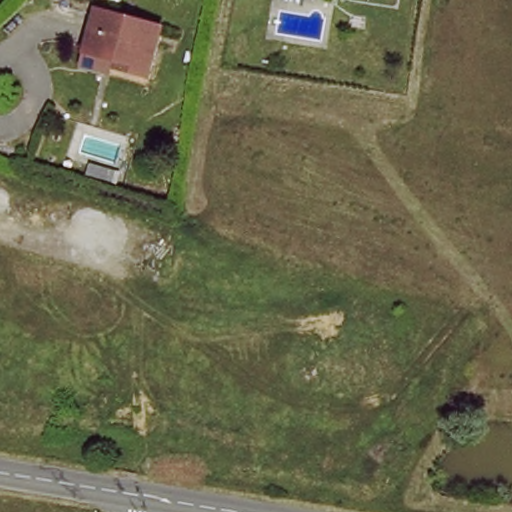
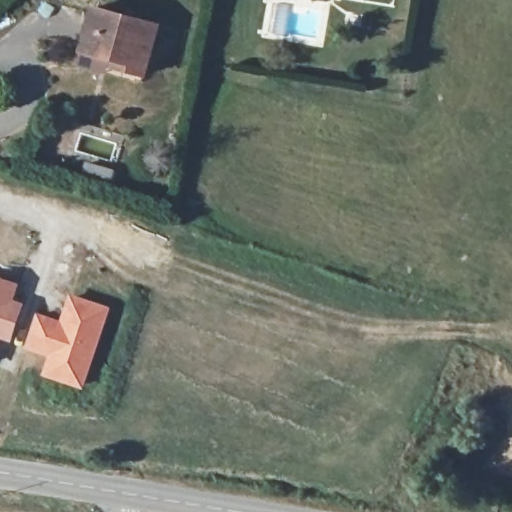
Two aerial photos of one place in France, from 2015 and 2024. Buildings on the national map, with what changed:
unchanged [(111,59),(81,51),(93,9),(158,26),(144,76),(123,70),(110,66),(111,59)]
demolished [(110,162),(76,152),(81,135),(115,145),(110,162)]
unchanged [(118,187),(83,177),(88,161),(123,171),(118,187)]
new [(15,298),(25,302),(11,342),(0,339),(0,340),(0,276),(20,282),(15,298)]
new [(37,317),(55,323),(51,337),(59,338),(73,298),(108,311),(82,386),(48,374),(54,356),(28,346),(37,317)]

